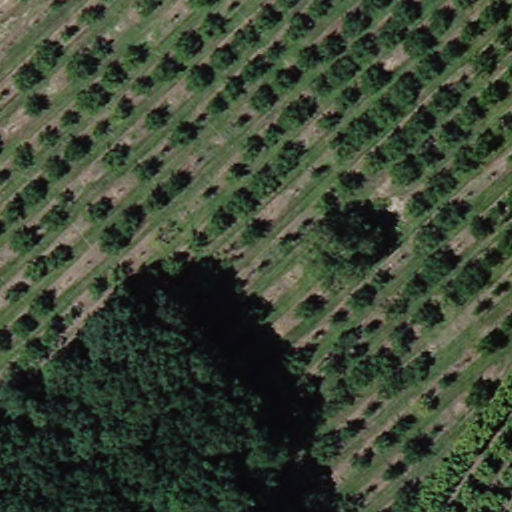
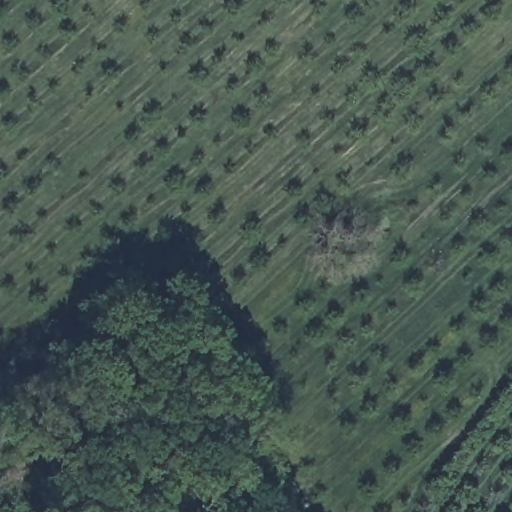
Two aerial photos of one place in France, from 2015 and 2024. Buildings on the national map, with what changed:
[]

